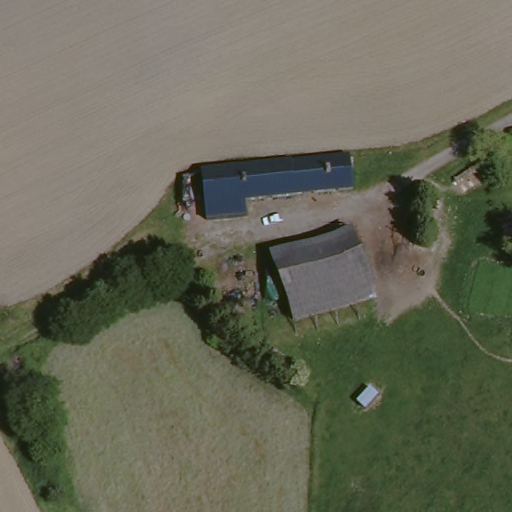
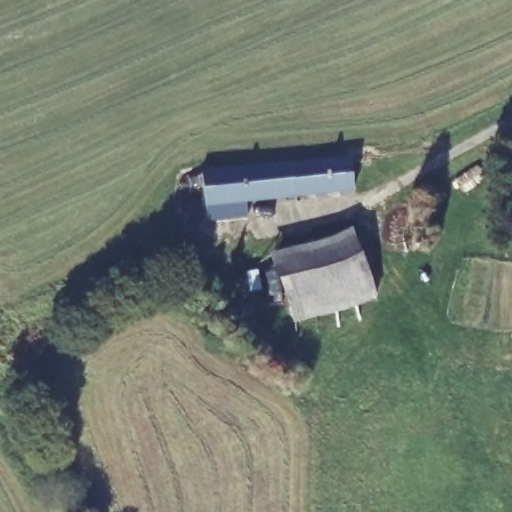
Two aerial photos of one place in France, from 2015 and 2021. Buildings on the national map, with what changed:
unchanged [(288,166),(348,160),(351,192),(292,195),(288,166)]
unchanged [(241,202),(243,220),(206,221),(201,175),(288,166),(292,195),(241,202)]
unchanged [(357,233),(359,242),(373,300),(293,322),(275,255),(357,233)]

